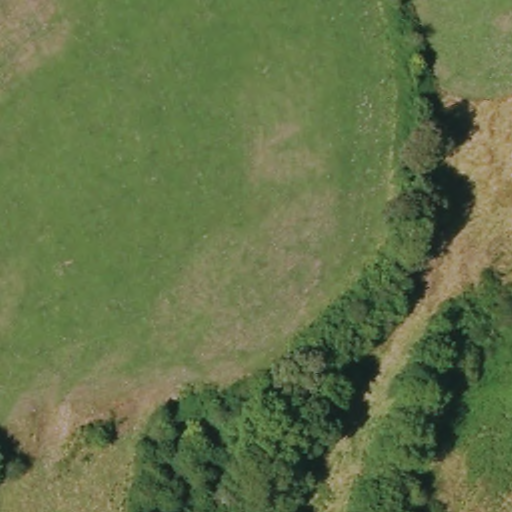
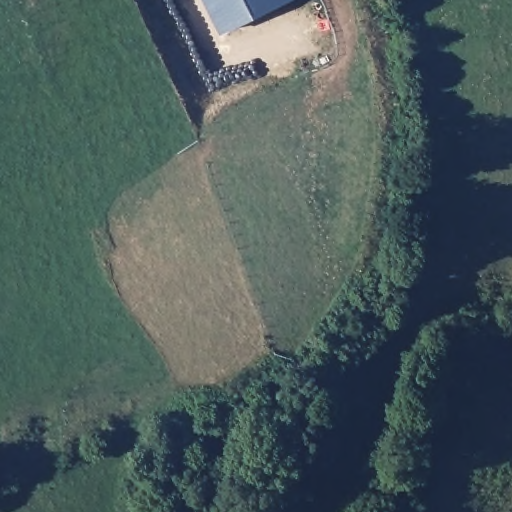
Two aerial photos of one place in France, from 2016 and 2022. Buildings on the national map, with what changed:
new [(222,35),(204,0),(291,0),(222,35)]

